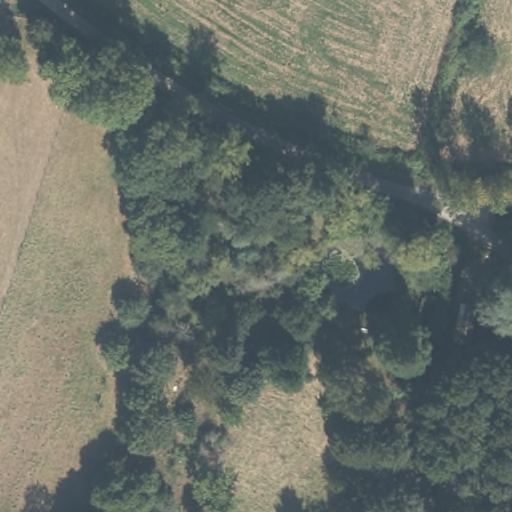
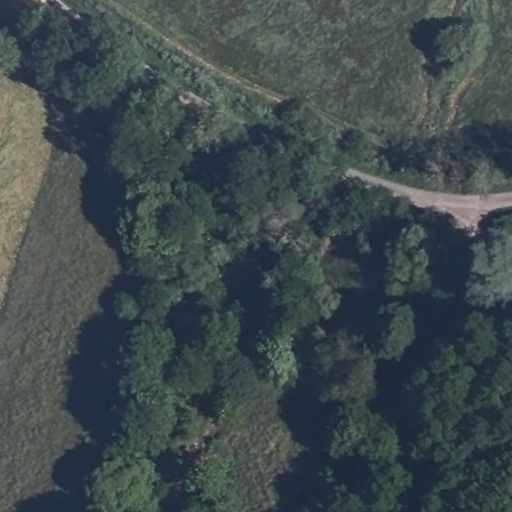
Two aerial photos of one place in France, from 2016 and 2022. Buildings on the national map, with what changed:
unchanged [(460,333),(445,329),(452,295),(466,297),(460,333)]

